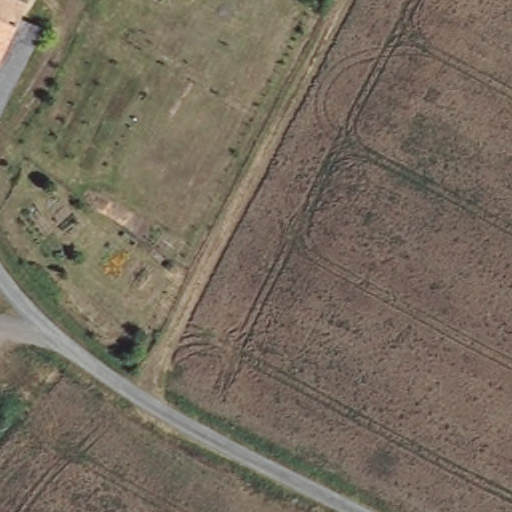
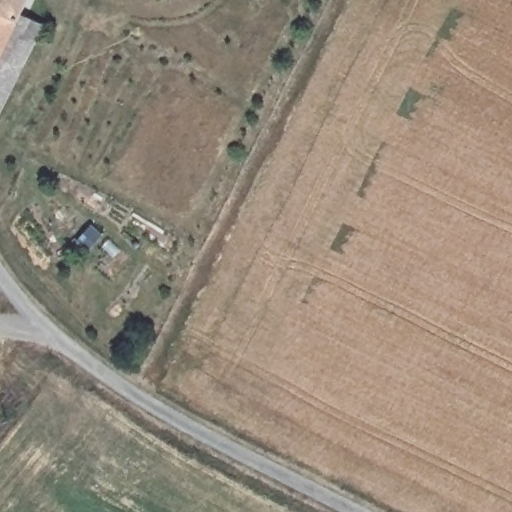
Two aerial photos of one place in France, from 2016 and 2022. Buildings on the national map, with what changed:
unchanged [(4,112),(0,110),(0,64),(7,50),(0,46),(0,0),(31,0),(24,12),(48,23),(4,112)]
unchanged [(7,50),(0,64),(0,46),(7,50)]

